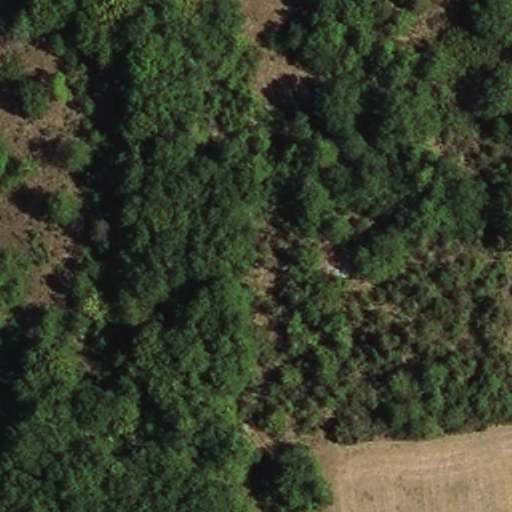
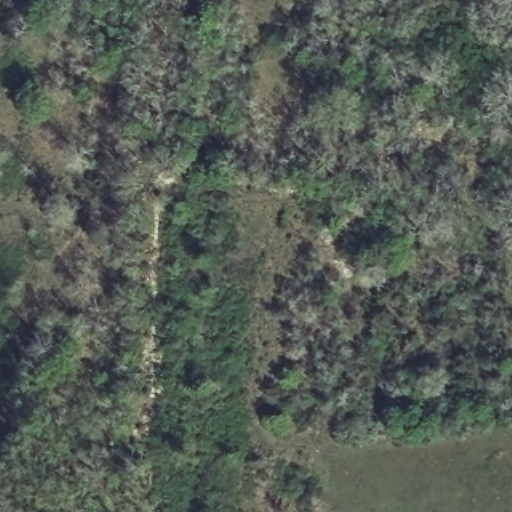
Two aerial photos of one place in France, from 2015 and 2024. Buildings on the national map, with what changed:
[]

